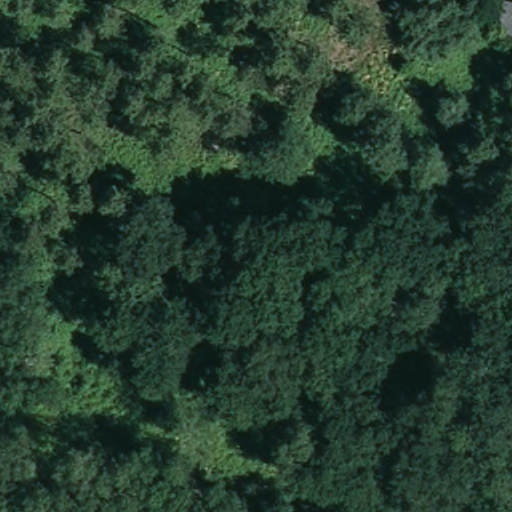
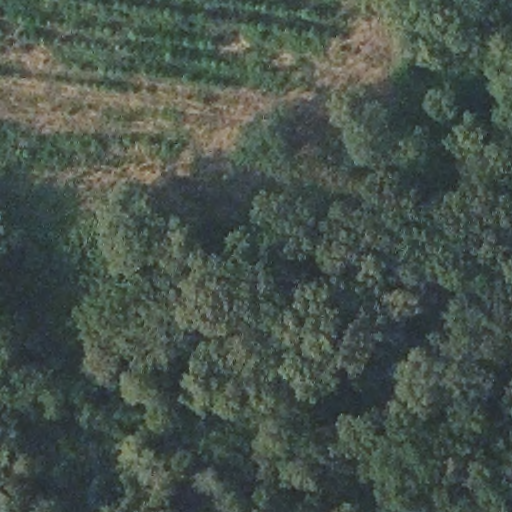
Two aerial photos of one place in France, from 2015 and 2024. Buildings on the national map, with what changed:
unchanged [(496,37),(502,0),(505,0),(512,1),(512,40),(496,37)]

